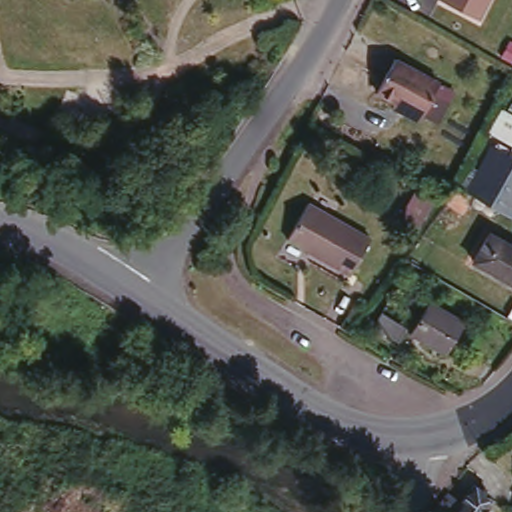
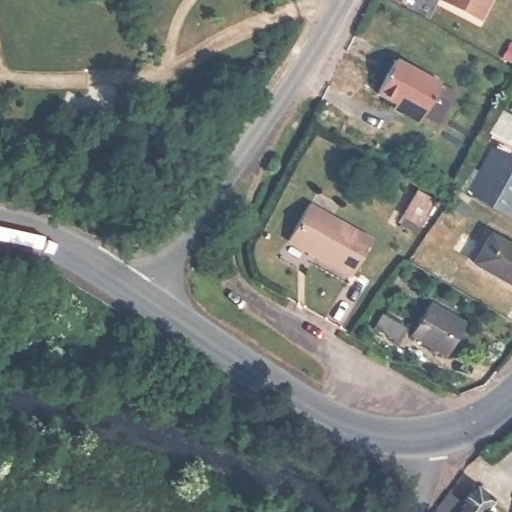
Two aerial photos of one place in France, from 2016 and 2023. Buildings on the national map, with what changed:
unchanged [(488,0),(477,19),(442,0),(488,0)]
unchanged [(437,126),(420,119),(381,94),(398,63),(440,88),(453,94),(437,126)]
unchanged [(512,102),(512,140),(510,142),(488,129),(500,106),(506,111),(512,102)]
unchanged [(467,201),(458,196),(466,179),(475,185),(490,159),(492,159),(495,155),(507,162),(504,166),(512,170),(512,228),(495,218),(467,201)]
unchanged [(434,202),(421,223),(404,213),(417,192),(434,202)]
unchanged [(348,275),(286,242),(304,205),(369,239),(348,275)]
unchanged [(471,262),(487,235),(505,246),(512,250),(512,288),(471,262)]
unchanged [(446,355),(414,332),(433,301),(466,323),(446,355)]
unchanged [(399,336),(376,323),(384,308),(406,322),(399,336)]
unchanged [(467,489),(485,502),(478,511),(480,512),(449,512),(467,489)]

